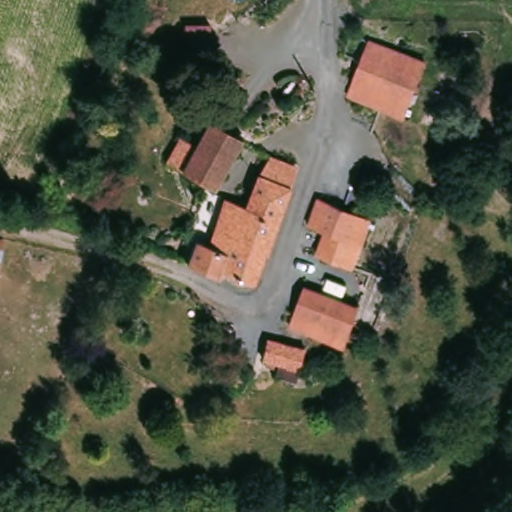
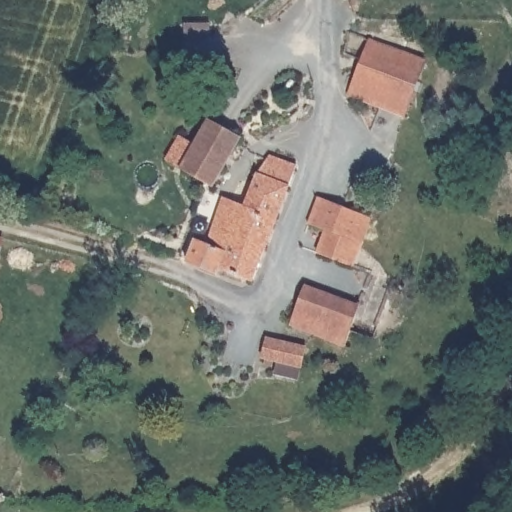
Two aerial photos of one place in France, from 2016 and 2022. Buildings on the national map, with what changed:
unchanged [(424,57),(405,110),(367,96),(379,56),(364,50),(371,35),(424,57)]
unchanged [(207,147),(217,124),(245,136),(225,182),(180,162),(189,140),(207,147)]
unchanged [(219,211),(227,214),(234,196),(255,204),(274,153),(299,160),(274,246),(248,236),(244,245),(209,235),(219,211)]
unchanged [(323,250),(329,231),(311,222),(321,194),(375,212),(358,264),(323,250)]
unchanged [(0,231),(9,233),(0,277),(0,231)]
unchanged [(209,235),(244,245),(248,236),(274,246),(265,275),(233,265),(231,269),(199,256),(209,235)]
unchanged [(347,345),(290,323),(305,283),(359,303),(347,345)]
unchanged [(279,365),(280,357),(278,357),(277,356),(275,356),(275,355),(276,353),(276,351),(279,337),(317,343),(314,357),(313,361),(312,361),(303,360),(302,360),(297,360),(294,359),(293,359),(290,367),(279,365)]
unchanged [(238,353),(237,365),(235,375),(234,380),(234,384),(233,384),(231,383),(219,382),(217,381),(213,381),(207,380),(204,380),(194,378),(195,375),(198,363),(199,350),(200,345),(238,353)]

